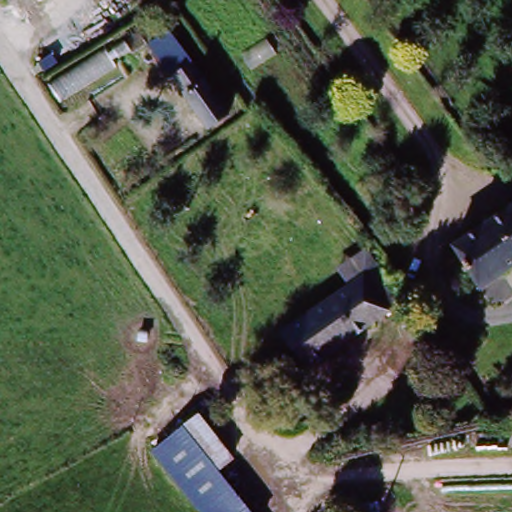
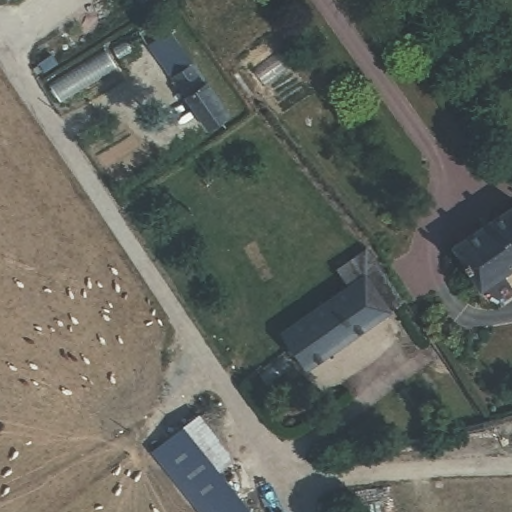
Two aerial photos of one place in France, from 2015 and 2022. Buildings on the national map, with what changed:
unchanged [(167,33),(233,120),(209,138),(171,89),(147,50),(167,33)]
unchanged [(442,241),(512,197),(512,269),(478,292),(442,241)]
unchanged [(357,278),(367,271),(392,309),(310,372),(286,339),(359,281),(357,278)]
unchanged [(175,410),(187,401),(215,438),(203,448),(255,512),(207,512),(145,434),(175,410)]

